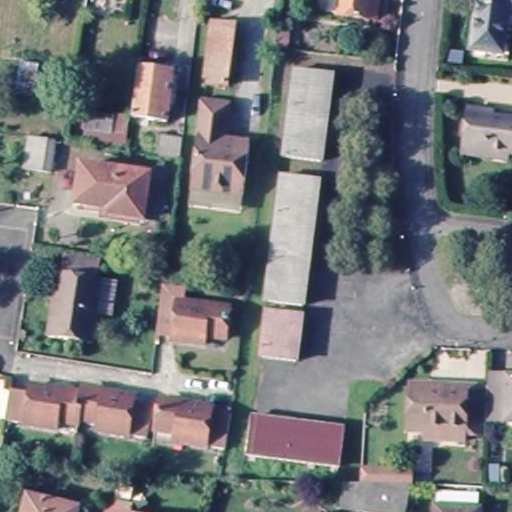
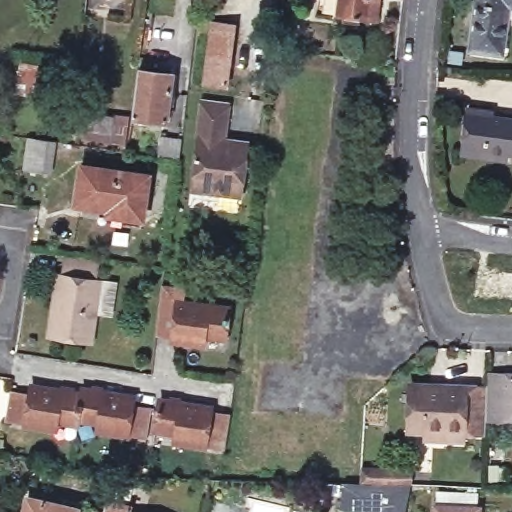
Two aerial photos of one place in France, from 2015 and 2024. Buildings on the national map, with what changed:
unchanged [(336,16),(338,0),(380,0),(378,21),(370,20),(336,16)]
unchanged [(512,0),(512,7),(511,7),(503,54),(474,50),(481,0),(512,0)]
unchanged [(217,27),(237,30),(230,89),(208,86),(217,27)]
unchanged [(280,34),(294,35),(292,50),(278,47),(280,34)]
unchanged [(19,64),(36,66),(32,97),(15,95),(19,64)]
unchanged [(171,75),(165,121),(135,117),(140,71),(171,75)]
demolished [(283,157),(285,149),(294,72),(329,77),(320,154),(318,162),(283,157)]
unchanged [(230,102),(226,140),(251,145),(244,195),(192,187),(204,100),(230,102)]
unchanged [(467,161),(468,154),(473,114),(499,117),(498,124),(512,126),(512,166),(467,161)]
unchanged [(81,140),(84,116),(111,119),(127,121),(126,134),(124,145),(81,140)]
unchanged [(57,142),(52,175),(27,171),(31,138),(57,142)]
unchanged [(159,157),(162,138),(183,141),(181,159),(159,157)]
unchanged [(107,219),(108,213),(110,209),(76,203),(82,166),(151,178),(143,219),(142,225),(107,219)]
demolished [(281,179),(316,184),(307,254),(272,250),(281,179)]
demolished [(307,254),(300,305),(266,300),(272,250),(307,254)]
unchanged [(99,268),(96,288),(101,290),(91,353),(50,347),(60,285),(62,286),(65,265),(99,268)]
unchanged [(173,285),(197,287),(195,302),(238,308),(235,340),(214,337),(212,346),(180,342),(180,338),(166,337),(169,317),(173,285)]
demolished [(262,357),(262,350),(267,312),(299,317),(294,354),(293,362),(262,357)]
unchanged [(512,372),(512,415),(485,414),(486,387),(487,371),(512,372)]
unchanged [(422,437),(422,432),(406,431),(407,388),(408,380),(439,381),(438,383),(486,387),(485,414),(483,436),(464,435),(464,441),(422,437)]
unchanged [(99,431),(80,427),(79,433),(61,431),(59,440),(7,432),(12,401),(32,403),(34,396),(65,401),(66,393),(80,396),(78,402),(83,403),(85,397),(92,397),(92,392),(104,393),(102,399),(137,404),(136,411),(152,413),(148,444),(97,437),(99,431)]
unchanged [(177,438),(157,436),(162,405),(168,406),(169,399),(179,401),(177,407),(212,412),(212,414),(232,417),(227,453),(176,447),(177,438)]
demolished [(253,415),(346,427),(342,467),(247,457),(253,415)]
unchanged [(487,467),(497,467),(497,481),(487,481),(487,467)]
unchanged [(346,484),(358,485),(360,468),(380,468),(391,469),(390,486),(410,487),(411,487),(406,512),(353,512),(341,510),(346,484)]
unchanged [(437,509),(439,509),(440,492),(467,494),(467,510),(483,511),(483,512),(437,512),(437,509)]
unchanged [(29,498),(78,511),(78,512),(25,512),(29,498)]
unchanged [(135,512),(96,512),(100,498),(115,502),(136,508),(135,512)]

